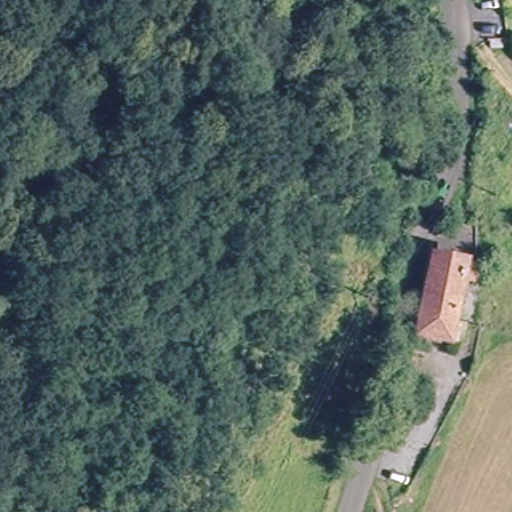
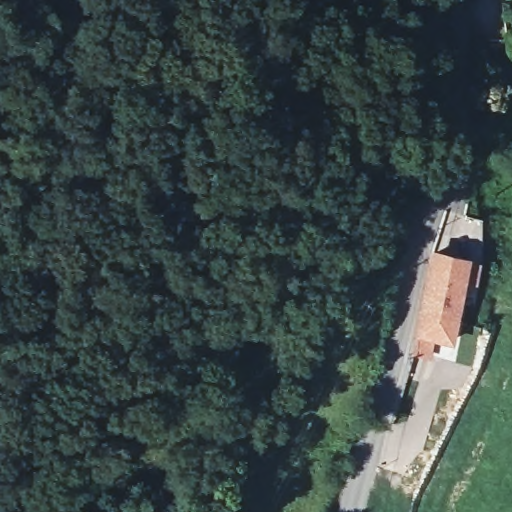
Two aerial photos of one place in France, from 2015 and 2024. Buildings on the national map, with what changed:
unchanged [(510,28),(508,45),(495,44),(496,27),(510,28)]
unchanged [(430,251),(477,262),(472,283),(460,280),(446,339),(411,330),(430,251)]

